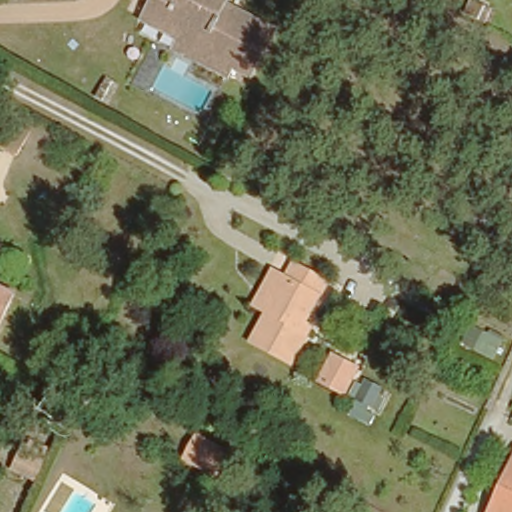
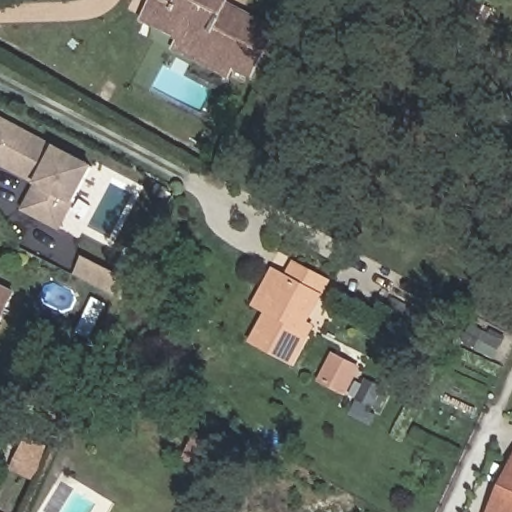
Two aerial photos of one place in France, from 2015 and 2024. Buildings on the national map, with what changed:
unchanged [(225,3),(276,31),(274,35),(254,72),(237,62),(231,72),(229,77),(179,50),(187,35),(151,14),(159,0),(227,0),(225,3)]
demolished [(14,149),(0,141),(0,115),(24,130),(14,149)]
new [(23,210),(36,184),(0,164),(0,119),(90,166),(58,228),(23,210)]
unchanged [(290,361),(253,340),(268,311),(262,307),(280,274),(289,278),(297,263),(328,281),(305,322),(310,325),(290,361)]
unchanged [(13,292),(5,307),(0,317),(0,283),(14,290),(13,292)]
unchanged [(333,356),(356,368),(343,390),(320,380),(333,356)]
new [(214,480),(204,475),(178,460),(193,434),(219,448),(228,453),(214,480)]
unchanged [(10,463),(20,446),(26,436),(48,448),(42,459),(32,476),(10,463)]
unchanged [(490,512),(497,499),(489,495),(512,450),(512,512),(490,512)]

